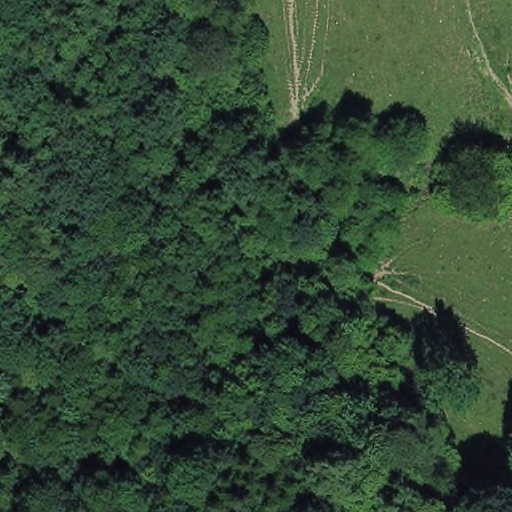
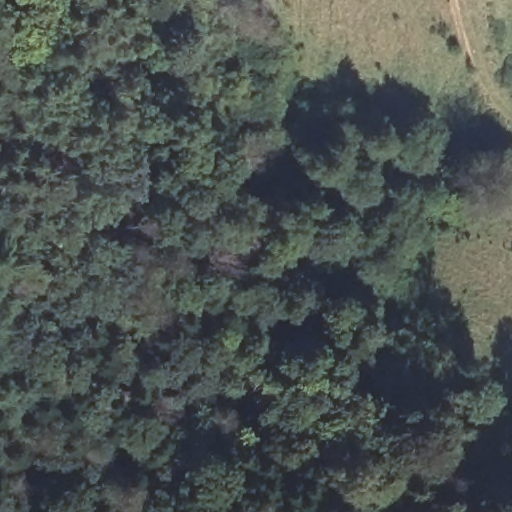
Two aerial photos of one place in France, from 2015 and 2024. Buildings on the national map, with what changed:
[]

